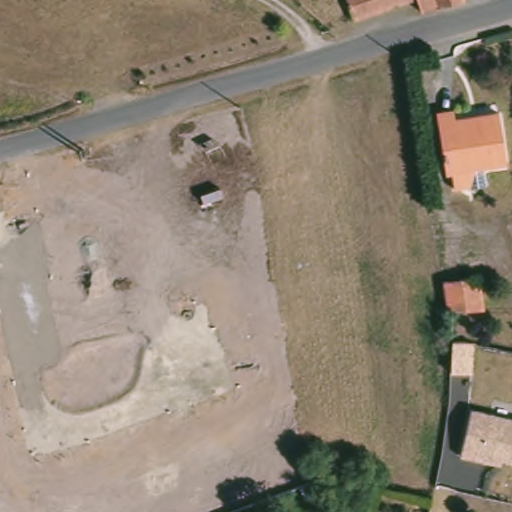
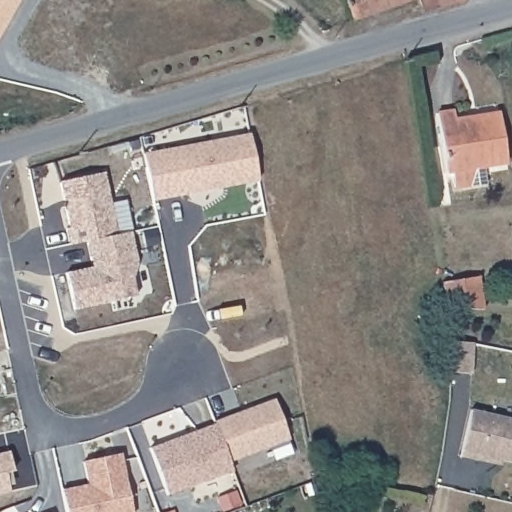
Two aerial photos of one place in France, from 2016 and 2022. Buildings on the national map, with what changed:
unchanged [(351,0),(409,0),(357,18),(351,0)]
unchanged [(424,9),(421,0),(458,0),(451,2),(424,9)]
unchanged [(450,184),(448,172),(441,174),(432,115),(449,111),(451,120),(493,114),(501,164),(478,167),(480,179),(450,184)]
new [(152,199),(142,152),(247,132),(257,179),(230,184),(219,186),(152,199)]
new [(68,243),(65,227),(69,226),(59,180),(104,172),(117,233),(87,240),(68,243)]
new [(93,266),(87,240),(130,230),(137,261),(132,277),(136,295),(74,309),(66,272),(93,266)]
unchanged [(449,309),(443,310),(439,284),(475,279),(480,310),(449,309)]
new [(276,397),(291,436),(231,459),(217,422),(216,419),(276,397)]
unchanged [(502,461),(500,466),(461,457),(470,408),(512,416),(512,463),(502,461)]
new [(217,422),(231,459),(234,468),(168,493),(151,447),(217,422)]
new [(14,471),(7,472),(11,492),(0,495),(0,454),(10,451),(14,471)]
new [(61,489),(86,483),(82,460),(120,453),(132,512),(65,512),(61,489)]

